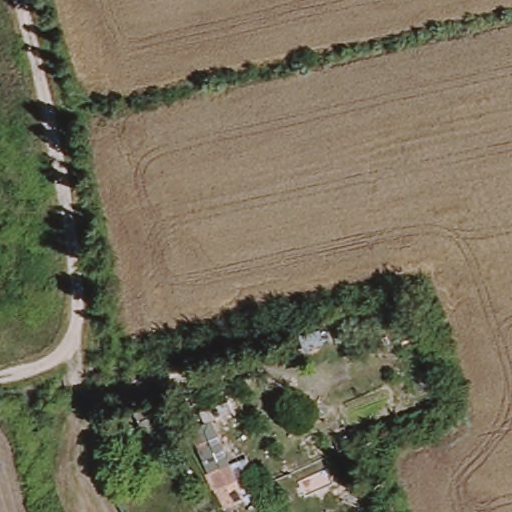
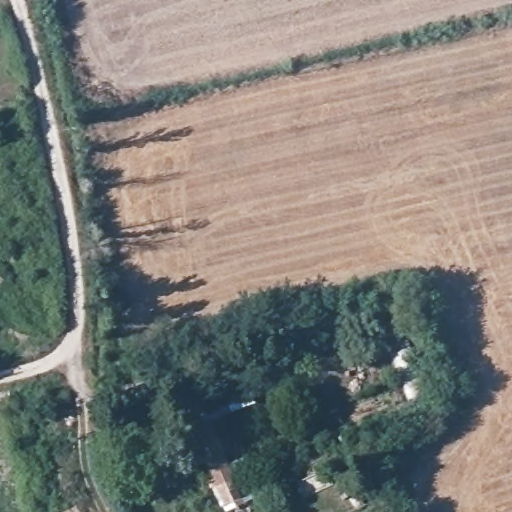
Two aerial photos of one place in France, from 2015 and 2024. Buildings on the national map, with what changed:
unchanged [(140,420),(177,422),(176,439),(138,436),(140,420)]
unchanged [(202,450),(222,442),(245,500),(225,509),(202,450)]

